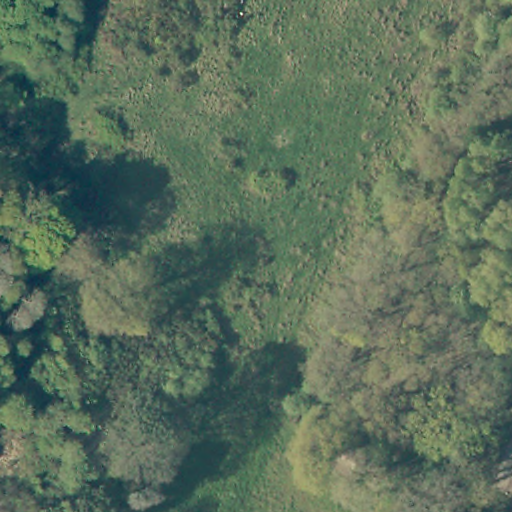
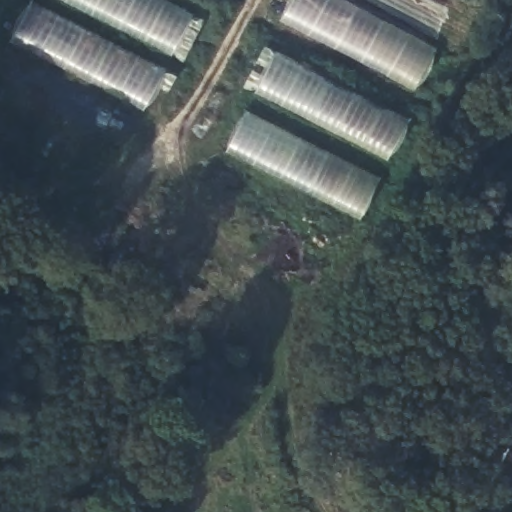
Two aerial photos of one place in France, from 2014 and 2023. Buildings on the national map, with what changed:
new [(165,0),(196,15),(145,109),(11,40),(31,0),(165,0)]
new [(342,0),(436,50),(416,90),(282,18),(291,0),(342,0)]
new [(274,53),(409,121),(389,158),(256,91),(274,53)]
new [(244,111),(382,178),(363,217),(225,149),(244,111)]

